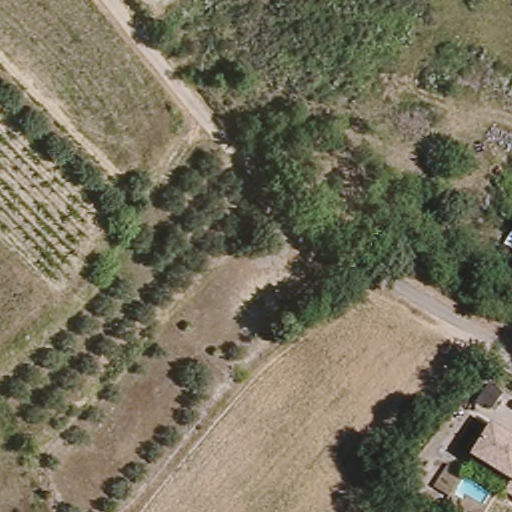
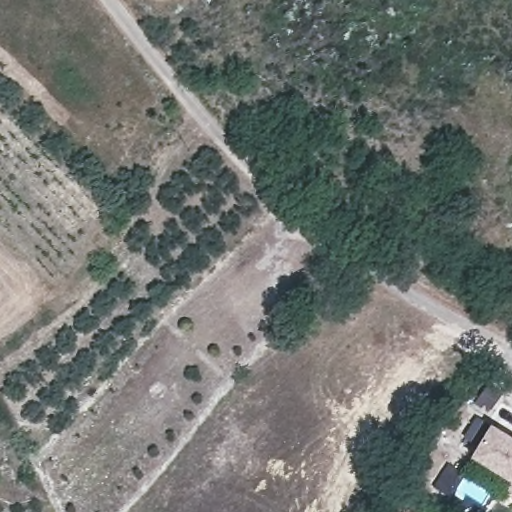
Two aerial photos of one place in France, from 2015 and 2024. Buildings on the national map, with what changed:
unchanged [(512,237),(512,254),(505,250),(512,237)]
unchanged [(467,457),(487,426),(512,442),(512,499),(509,497),(500,492),(507,482),(467,457)]

